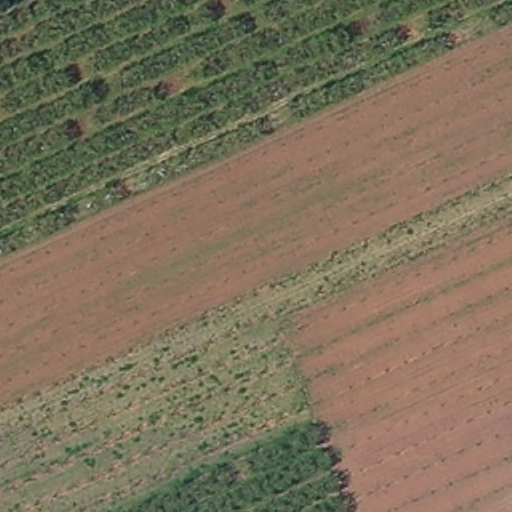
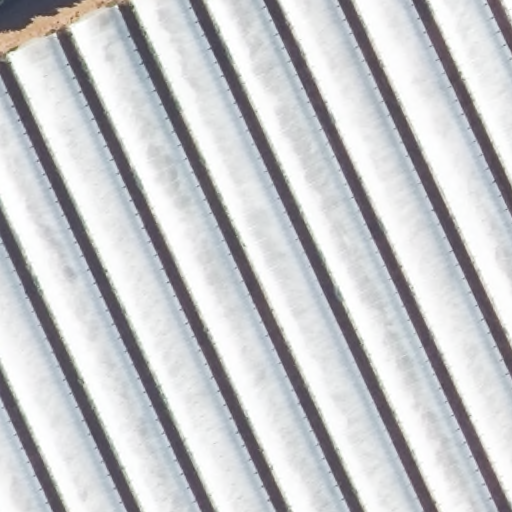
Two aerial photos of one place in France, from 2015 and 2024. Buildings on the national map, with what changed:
new [(512,0),(512,512),(0,512),(0,58),(127,0),(512,0)]

